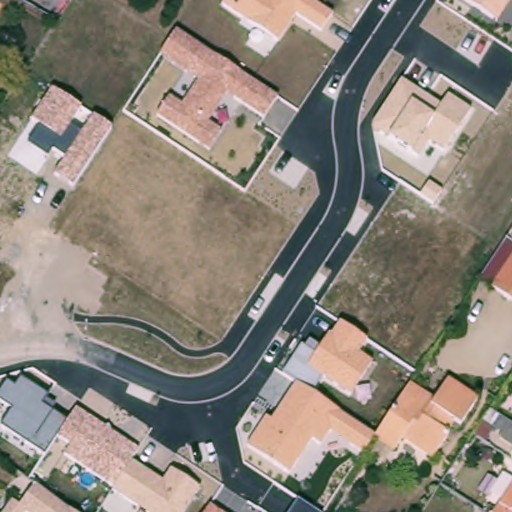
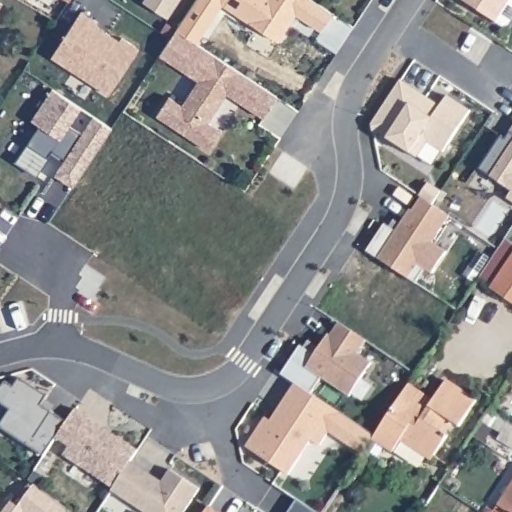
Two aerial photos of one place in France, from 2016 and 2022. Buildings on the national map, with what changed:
unchanged [(66,0),(71,0),(70,2),(66,0)]
new [(178,0),(166,18),(144,3),(146,0),(178,0)]
unchanged [(310,0),(332,15),(321,33),(295,16),(277,42),(221,5),(225,0),(310,0)]
unchanged [(462,0),(510,0),(496,22),(462,0)]
new [(81,11),(97,22),(95,25),(119,41),(121,38),(138,49),(108,95),(51,57),(81,11)]
unchanged [(169,97),(181,105),(198,80),(160,54),(176,32),(277,98),(263,119),(226,95),(209,123),(223,132),(210,151),(156,117),(169,97)]
unchanged [(371,125),(400,80),(441,106),(447,96),(470,111),(445,152),(428,142),(418,159),(411,155),(390,140),(373,131),(371,125)]
unchanged [(40,126),(31,121),(51,90),(80,106),(70,125),(82,132),(94,115),(112,127),(72,187),(54,176),(65,159),(53,151),(47,159),(27,145),(40,126)]
new [(482,170),(503,136),(507,138),(512,130),(512,191),(482,170)]
new [(389,227),(394,220),(401,225),(411,210),(413,211),(422,197),(420,196),(428,183),(441,191),(432,205),(450,215),(432,242),(446,251),(432,273),(425,268),(415,283),(367,251),(385,225),(389,227)]
new [(507,199),(512,192),(512,201),(507,199)]
unchanged [(491,288),(478,278),(505,237),(512,242),(512,302),(491,288)]
unchanged [(266,417),(271,420),(296,382),(283,373),(301,345),(305,347),(310,339),(321,346),(327,335),(332,335),(340,323),(366,341),(358,354),(372,363),(351,395),(323,377),(313,392),(340,411),(373,436),(363,452),(330,431),(320,447),(311,441),(290,475),(246,447),(266,417)]
unchanged [(433,396),(446,377),(477,397),(460,421),(452,417),(445,428),(448,431),(433,454),(401,435),(393,446),(373,433),(408,380),(423,390),(433,396)]
unchanged [(70,445),(57,435),(45,456),(0,427),(11,410),(0,403),(0,391),(5,382),(15,389),(20,379),(47,395),(45,400),(54,406),(51,412),(66,422),(75,409),(139,452),(132,461),(163,481),(171,470),(200,490),(183,512),(148,512),(114,488),(64,455),(70,445)]
unchanged [(12,494),(22,502),(34,483),(58,501),(49,512),(28,512),(1,512),(12,494)]
unchanged [(499,506),(512,486),(512,512),(507,512),(499,506)]
unchanged [(298,498),(317,512),(289,512),(298,498)]
unchanged [(58,501),(75,512),(49,512),(58,501)]
unchanged [(209,505),(219,512),(204,512),(209,505)]

